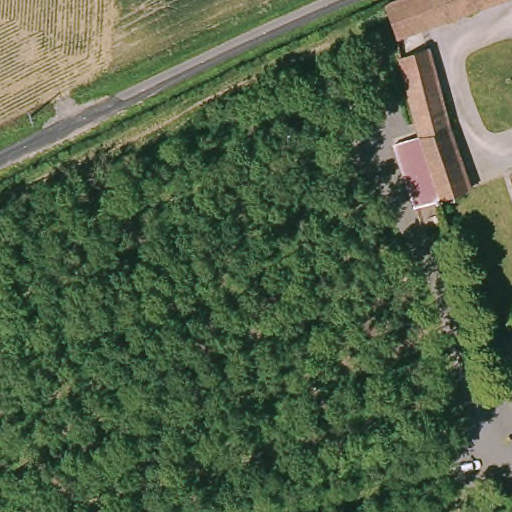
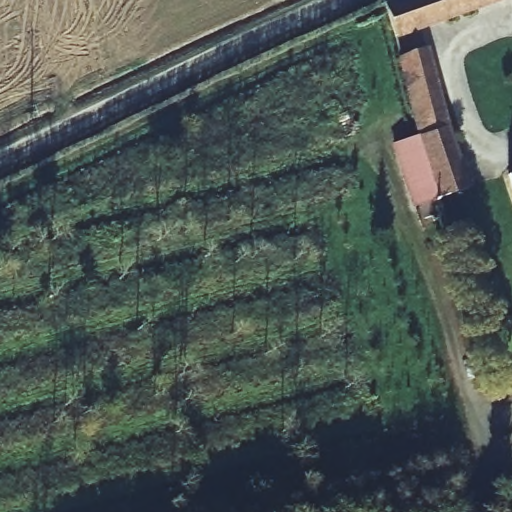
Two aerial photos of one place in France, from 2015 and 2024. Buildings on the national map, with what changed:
unchanged [(373,7),(391,0),(493,0),(402,31),(387,37),(373,7)]
unchanged [(435,208),(419,150),(407,89),(402,68),(400,55),(404,54),(426,50),(442,123),(465,197),(449,202),(435,208)]
unchanged [(435,208),(420,215),(399,157),(419,150),(435,208)]

